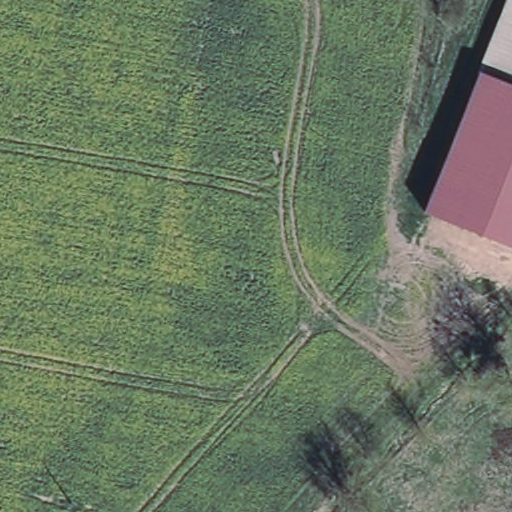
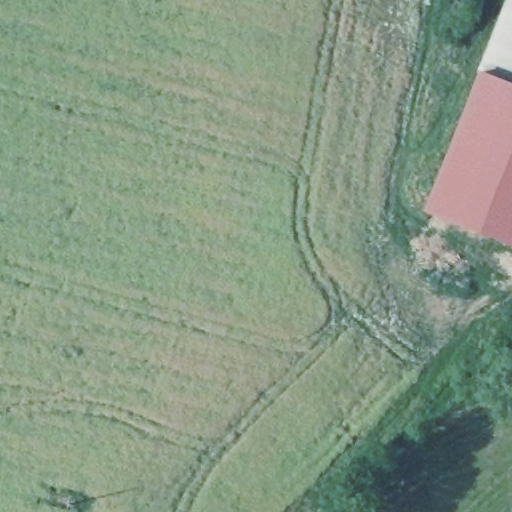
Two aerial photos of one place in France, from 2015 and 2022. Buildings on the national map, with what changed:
unchanged [(509,0),(512,0),(512,87),(481,74),(509,0)]
unchanged [(481,74),(512,87),(512,247),(427,215),(481,74)]

